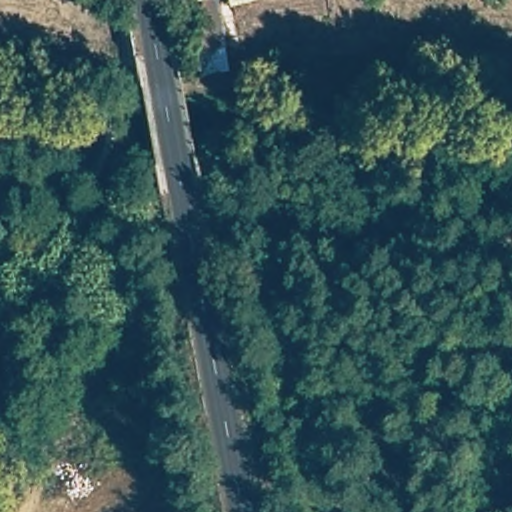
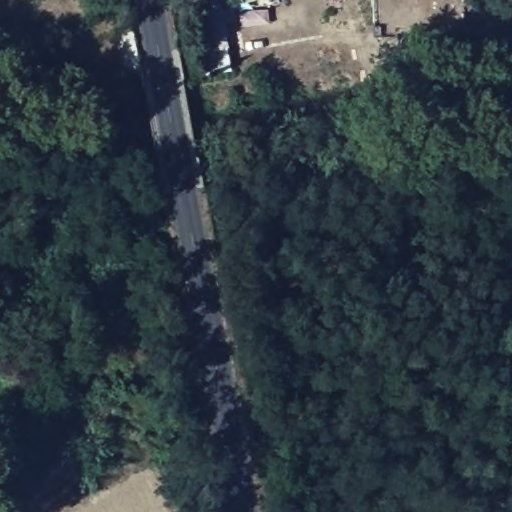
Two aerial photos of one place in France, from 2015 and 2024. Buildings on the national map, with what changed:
unchanged [(112,0),(112,49),(86,48),(87,0),(106,0),(112,0)]
unchanged [(228,7),(226,0),(262,0),(228,7)]

